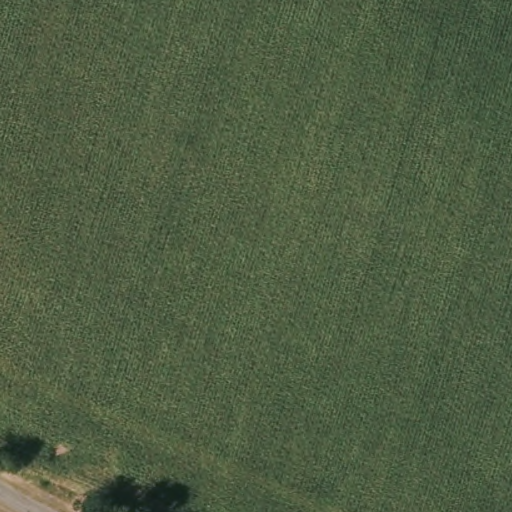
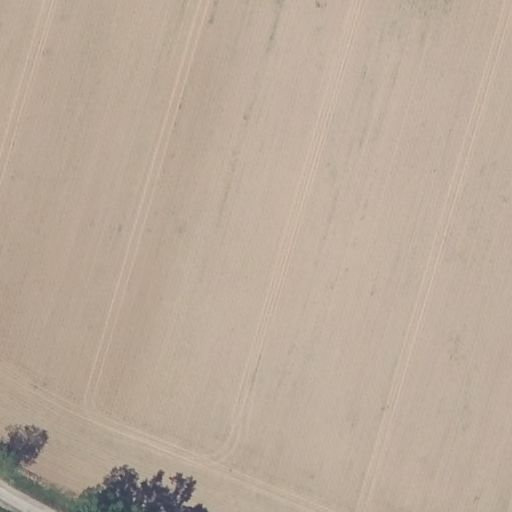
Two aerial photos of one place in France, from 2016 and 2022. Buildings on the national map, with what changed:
[]

